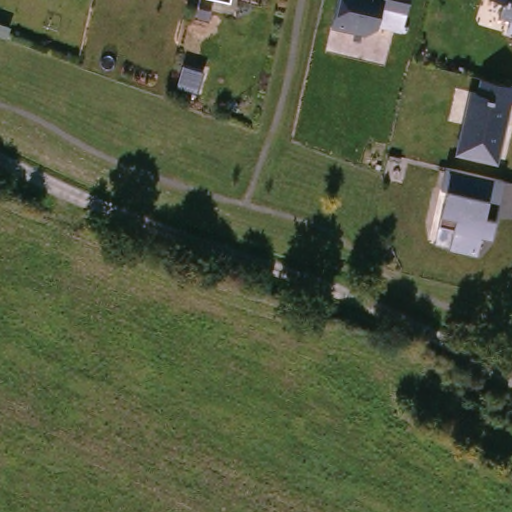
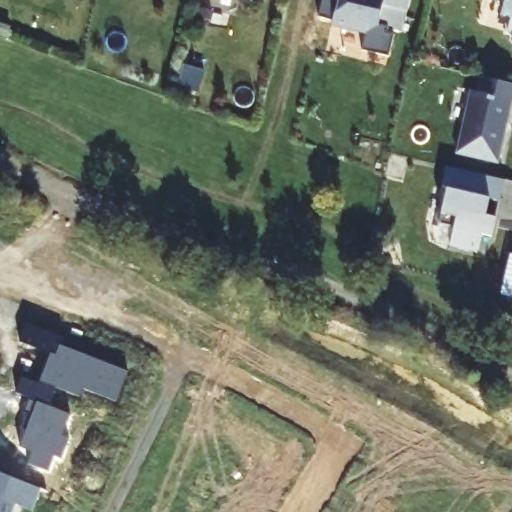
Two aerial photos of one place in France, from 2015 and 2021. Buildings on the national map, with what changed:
unchanged [(337,0),(407,0),(402,27),(372,23),(370,29),(334,21),(337,0)]
unchanged [(512,31),(507,30),(511,11),(498,8),(499,0),(512,0),(512,31)]
new [(184,63),(203,70),(195,92),(176,85),(184,63)]
unchanged [(478,87),(482,71),(512,79),(512,107),(498,160),(457,149),(472,86),(478,87)]
unchanged [(456,218),(438,215),(447,166),(502,178),(491,229),(477,229),(473,247),(450,242),(456,218)]
new [(22,378),(38,384),(50,355),(19,343),(26,324),(63,339),(61,346),(128,372),(116,402),(83,389),(79,397),(56,388),(49,407),(28,399),(16,394),(22,378)]
new [(25,433),(21,432),(27,415),(23,413),(28,399),(49,407),(70,415),(62,436),(69,439),(61,460),(54,457),(48,473),(27,465),(32,452),(19,447),(25,433)]
new [(40,489),(31,511),(14,504),(11,512),(0,512),(0,474),(40,489)]

